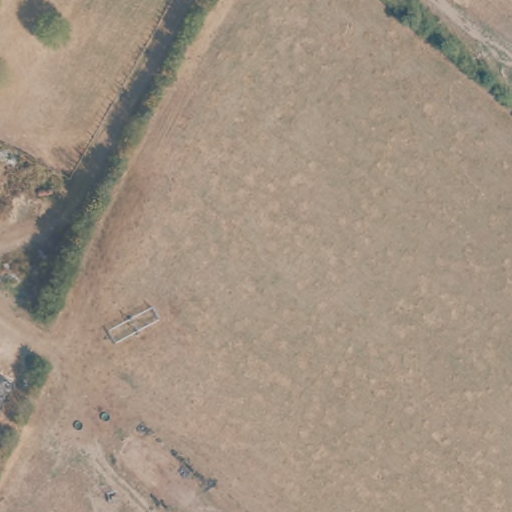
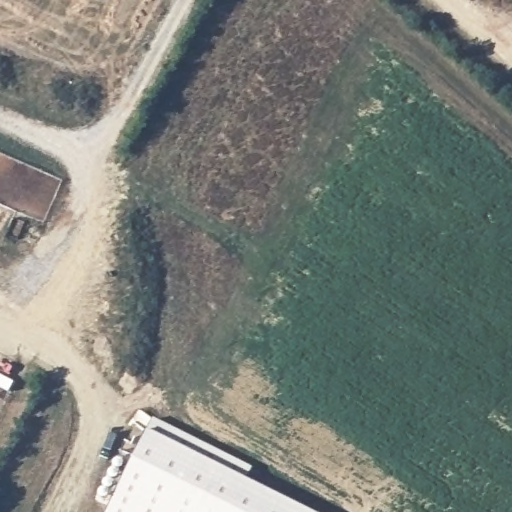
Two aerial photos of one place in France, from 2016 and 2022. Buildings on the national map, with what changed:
new [(145,431),(152,416),(252,468),(246,480),(312,512),(104,512),(145,431)]

